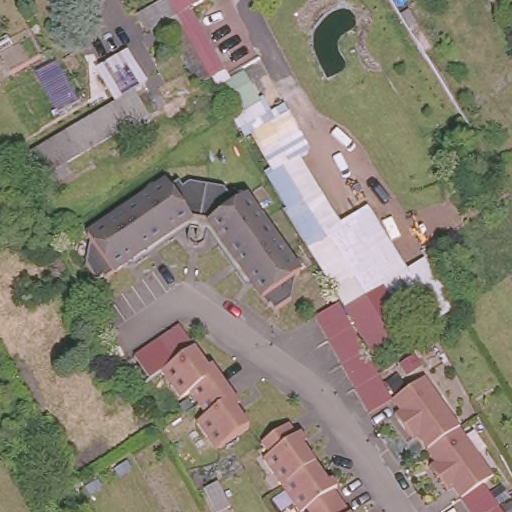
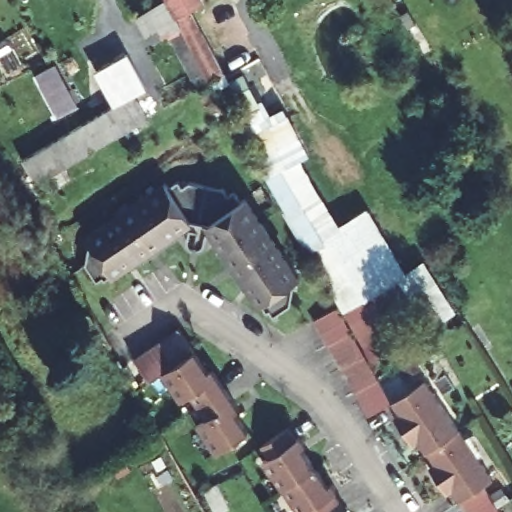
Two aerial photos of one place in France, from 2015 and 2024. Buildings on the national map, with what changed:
unchanged [(206,2),(191,11),(176,19),(165,0),(204,0),(206,2)]
unchanged [(492,0),(502,0),(498,9),(492,0)]
unchanged [(169,35),(181,28),(176,19),(191,11),(225,72),(211,81),(199,88),(169,35)]
unchanged [(89,47),(115,32),(129,58),(103,72),(89,47)]
unchanged [(213,86),(249,64),(275,108),(285,102),(314,148),(303,156),(342,221),(368,204),(409,267),(427,258),(459,309),(381,357),(348,302),(250,128),(240,133),(213,86)]
unchanged [(135,93),(156,129),(44,196),(23,160),(135,93)]
unchanged [(166,179),(169,183),(179,176),(183,182),(189,178),(225,183),(230,190),(235,186),(242,196),(246,193),(300,272),(296,275),(292,298),(275,310),(271,304),(268,306),(254,285),(209,219),(192,215),(126,261),(105,275),(103,273),(97,277),(86,260),(90,237),(87,233),(166,179)]
unchanged [(348,302),(381,357),(402,398),(372,416),(317,319),(348,302)]
unchanged [(190,333),(205,356),(175,377),(160,387),(144,364),(190,333)]
unchanged [(219,376),(222,373),(248,411),(245,414),(259,435),(229,456),(220,442),(216,444),(207,430),(217,423),(201,400),(191,406),(181,392),(184,390),(175,377),(205,356),(219,376)]
unchanged [(504,474),(494,481),(471,496),(463,485),(458,489),(444,469),(450,465),(424,429),(419,432),(405,413),(410,409),(402,398),(435,375),(504,474)]
unchanged [(306,512),(297,512),(291,502),(295,499),(277,473),(273,476),(264,462),(270,458),(262,446),(289,427),(298,439),(301,436),(305,443),(302,446),(330,487),(333,484),(338,490),(334,493),(347,512),(307,512),(307,511),(306,512)]
unchanged [(512,509),(512,512),(481,512),(471,496),(494,481),(512,509)]

